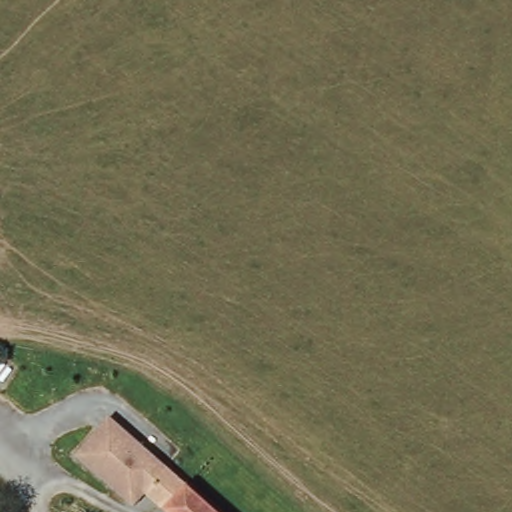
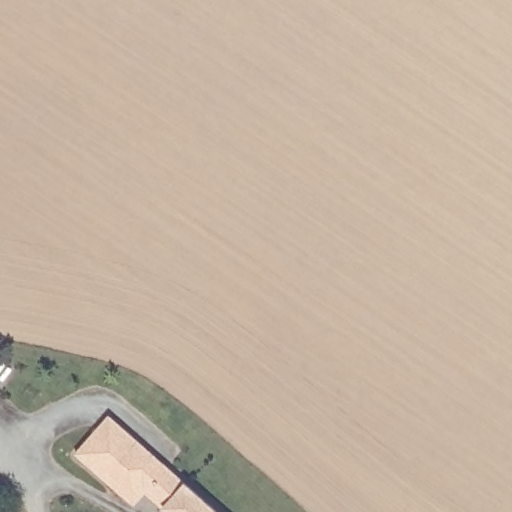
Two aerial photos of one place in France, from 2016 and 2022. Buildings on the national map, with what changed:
unchanged [(105,442),(149,478),(135,491),(141,496),(131,507),(74,458),(110,415),(117,421),(105,442)]
unchanged [(135,491),(149,478),(105,442),(117,421),(187,482),(220,512),(158,512),(141,496),(135,491)]

